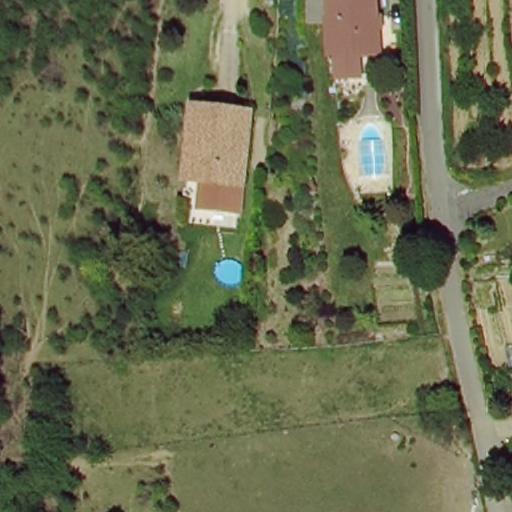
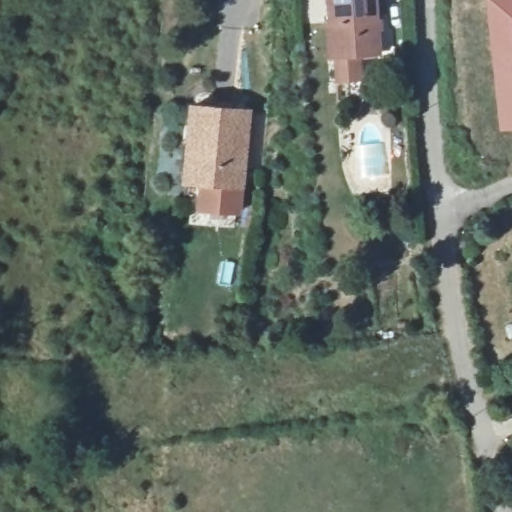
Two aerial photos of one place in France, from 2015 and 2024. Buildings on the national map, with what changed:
unchanged [(332,25),(329,0),(374,0),(380,55),(336,60),(337,65),(330,66),(326,25),(332,25)]
new [(502,132),(489,0),(512,0),(512,131),(502,132)]
unchanged [(251,94),(245,169),(193,165),(187,165),(193,90),(251,94)]
unchanged [(245,169),(243,195),(192,191),(193,165),(245,169)]

